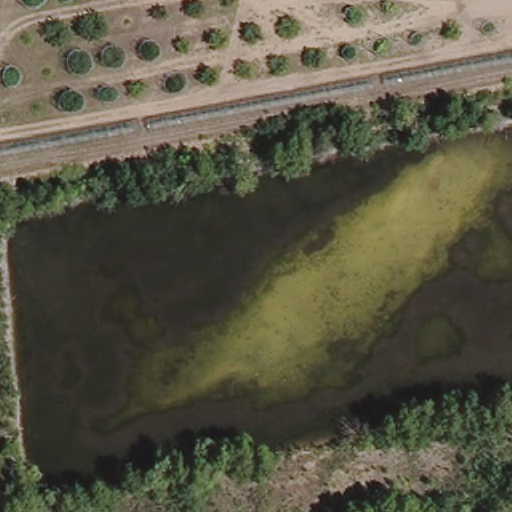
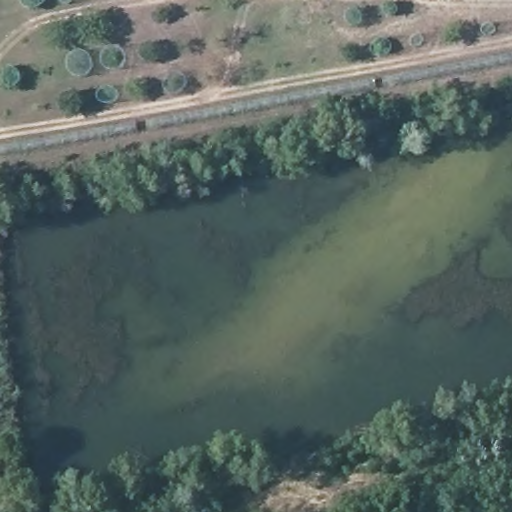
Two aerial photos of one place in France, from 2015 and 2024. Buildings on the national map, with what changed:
[]

